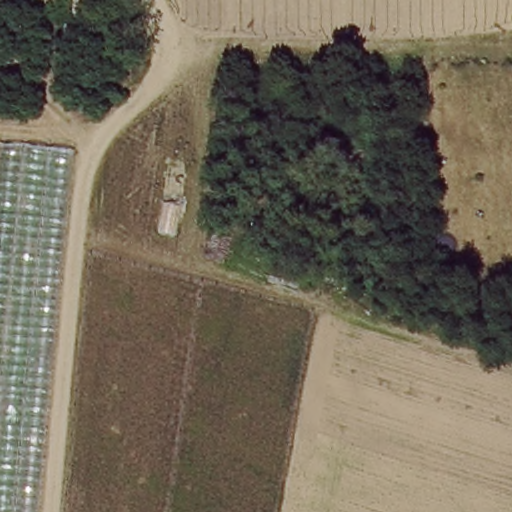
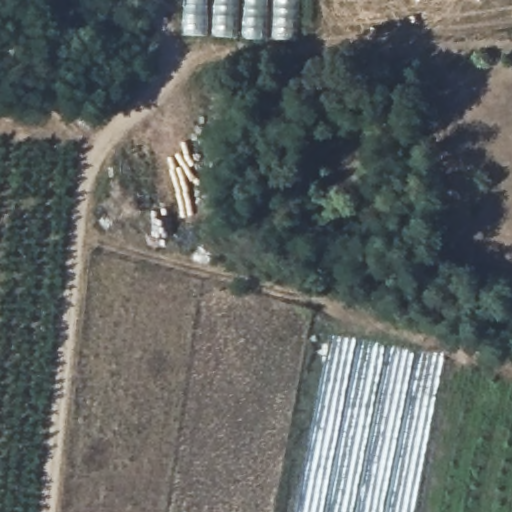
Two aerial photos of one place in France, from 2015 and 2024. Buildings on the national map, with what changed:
new [(184,0),(297,0),(295,40),(183,36),(184,0)]
demolished [(36,512),(0,512),(0,140),(76,149),(36,512)]
new [(449,361),(420,512),(296,512),(328,336),(449,361)]

